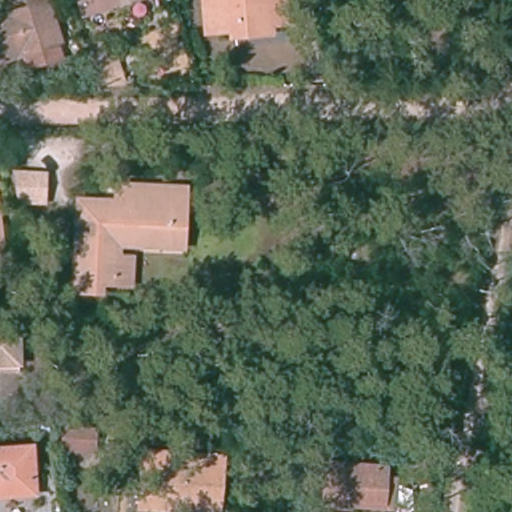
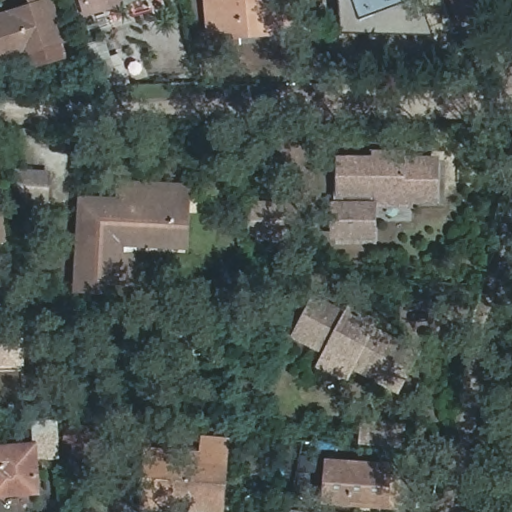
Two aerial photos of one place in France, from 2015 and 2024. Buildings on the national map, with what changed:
unchanged [(45,50),(29,55),(28,54),(0,62),(0,21),(32,10),(30,0),(52,0),(59,23),(55,25),(61,45),(65,60),(50,65),(45,50)]
unchanged [(81,15),(76,0),(129,0),(120,3),(81,15)]
unchanged [(240,29),(207,30),(206,0),(276,0),(277,23),(277,34),(240,35),(240,29)]
new [(343,31),(339,0),(418,0),(431,35),(343,31)]
unchanged [(462,1),(468,0),(480,0),(484,16),(468,20),(462,1)]
unchanged [(96,80),(84,44),(103,36),(116,74),(96,80)]
new [(336,156),(370,155),(370,150),(406,150),(406,155),(439,155),(440,204),(412,204),(412,207),(376,207),(377,241),(335,240),(334,201),(336,156)]
unchanged [(49,206),(19,205),(15,170),(50,171),(49,206)]
unchanged [(76,296),(77,284),(79,200),(115,200),(115,183),(184,184),(183,206),(182,239),(169,239),(115,238),(115,251),(132,252),(131,285),(115,285),(99,285),(99,296),(76,296)]
new [(286,240),(246,240),(247,200),(285,200),(286,240)]
unchanged [(0,242),(0,211),(5,241),(0,242)]
new [(397,395),(353,370),(348,378),(316,363),(321,354),(290,336),(312,293),(345,310),(347,303),(378,320),(375,328),(422,350),(397,395)]
unchanged [(25,358),(0,359),(0,326),(22,325),(25,358)]
new [(405,446),(358,445),(359,420),(405,421),(405,446)]
unchanged [(95,429),(94,447),(67,445),(68,427),(95,429)]
unchanged [(224,463),(158,459),(155,497),(221,502),(220,511),(142,507),(146,448),(224,453),(224,463)]
unchanged [(40,495),(3,497),(2,479),(0,479),(0,451),(37,449),(40,495)]
unchanged [(396,505),(347,501),(323,500),(326,457),(386,461),(385,475),(398,475),(396,505)]
unchanged [(155,497),(158,459),(224,463),(221,502),(155,497)]
unchanged [(305,485),(305,470),(318,470),(317,485),(305,485)]

